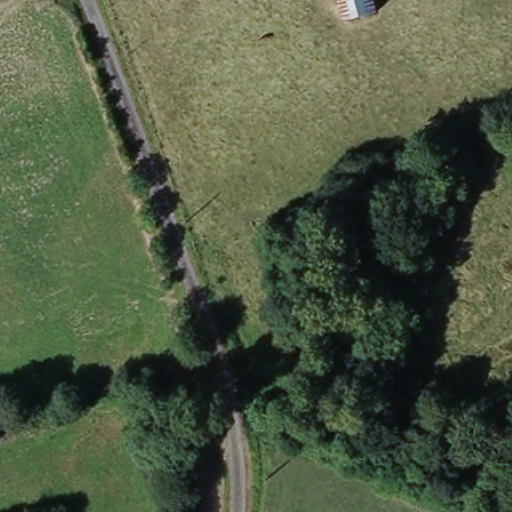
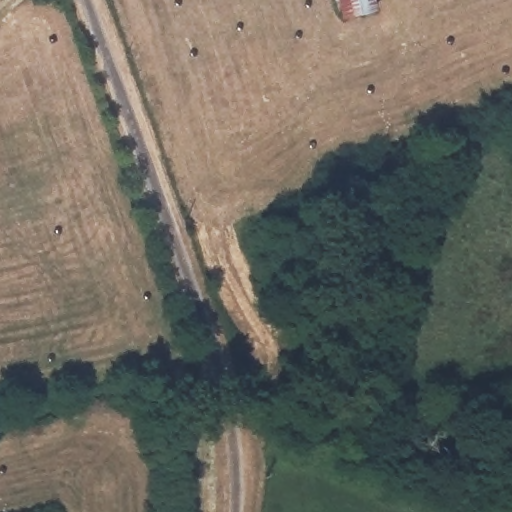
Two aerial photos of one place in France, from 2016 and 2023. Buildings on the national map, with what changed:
unchanged [(377,14),(345,21),(339,0),(374,0),(377,14)]

